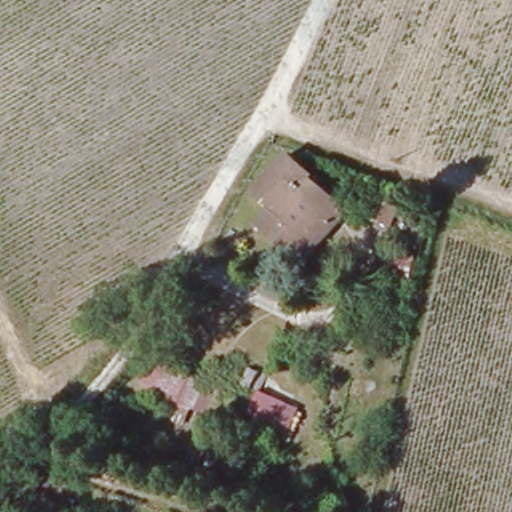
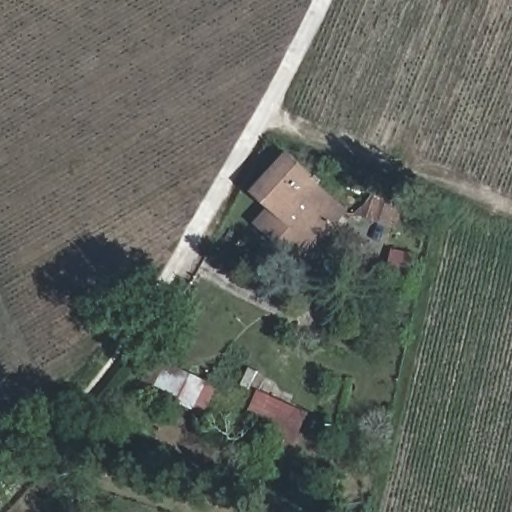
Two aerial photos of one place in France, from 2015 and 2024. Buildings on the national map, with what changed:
unchanged [(266,206),(252,195),(284,156),(312,177),(310,180),(342,204),(301,259),(262,230),(253,223),(266,206)]
unchanged [(191,409),(185,420),(171,415),(176,403),(141,385),(155,359),(207,382),(191,409)]
unchanged [(271,425),(247,414),(257,392),(281,403),(271,425)]

